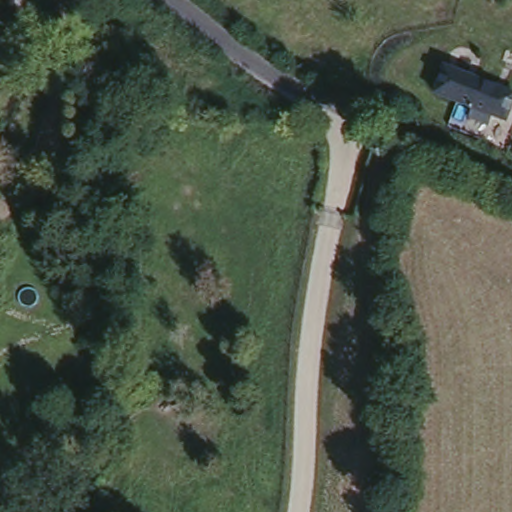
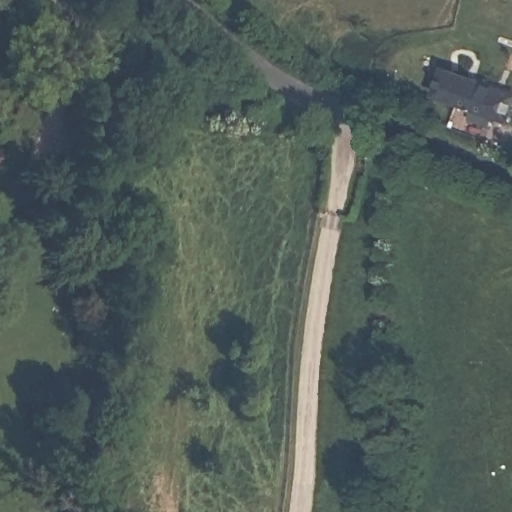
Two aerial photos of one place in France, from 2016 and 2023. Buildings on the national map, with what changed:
unchanged [(512,90),(512,106),(508,119),(497,115),(491,128),(467,120),(470,111),(435,99),(444,67),(512,90)]

